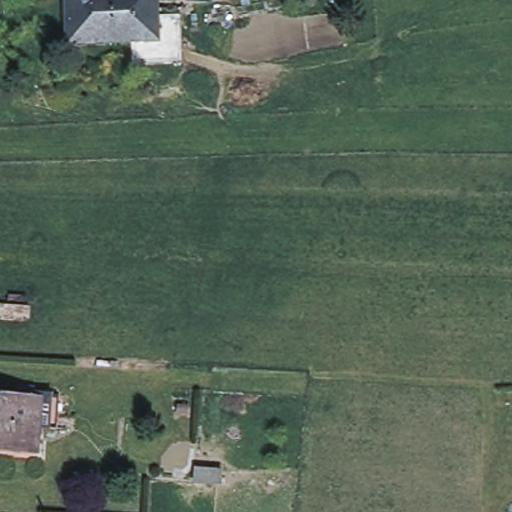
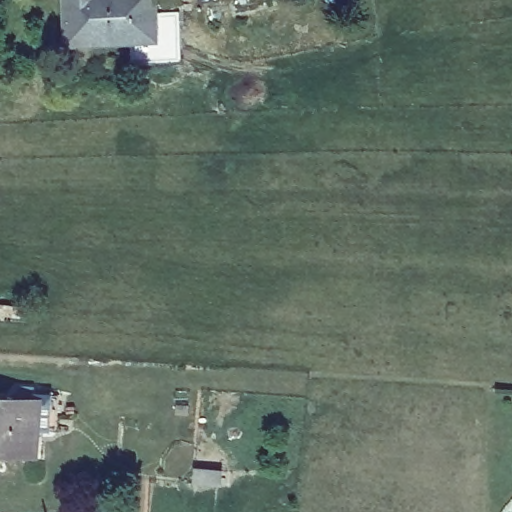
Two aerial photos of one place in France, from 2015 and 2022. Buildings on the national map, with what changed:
unchanged [(150,7),(152,32),(125,34),(64,37),(62,0),(150,0),(150,7)]
unchanged [(152,32),(150,7),(175,6),(177,55),(127,58),(125,34),(152,32)]
unchanged [(0,444),(0,394),(33,396),(34,389),(58,390),(57,424),(37,423),(35,446),(0,444)]
unchanged [(222,470),(220,485),(195,482),(195,468),(222,470)]

